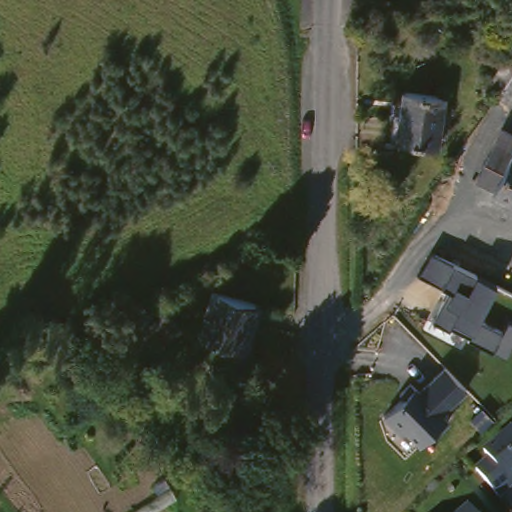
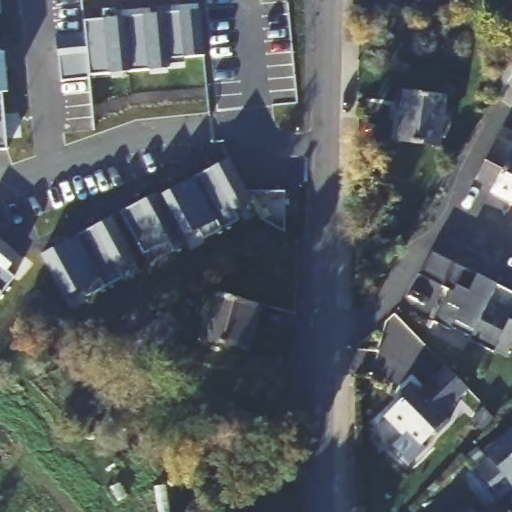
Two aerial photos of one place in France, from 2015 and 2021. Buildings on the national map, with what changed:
new [(115,26),(123,25),(123,17),(155,15),(155,22),(162,21),(162,6),(174,5),(174,11),(198,10),(201,55),(183,56),(184,64),(166,65),(166,69),(88,74),(84,20),(102,20),(102,10),(114,9),(115,19),(115,26)]
new [(0,151),(0,53),(2,52),(6,92),(1,93),(6,150),(0,151)]
unchanged [(494,79),(512,52),(512,90),(506,86),(494,79)]
unchanged [(455,140),(446,140),(445,150),(405,145),(412,94),(452,100),(450,115),(458,115),(455,140)]
unchanged [(503,186),(484,176),(511,124),(512,125),(512,196),(501,190),(503,186)]
new [(133,219),(127,207),(157,192),(162,205),(170,201),(165,192),(220,164),(225,172),(232,167),(249,201),(232,210),(235,217),(228,220),(230,225),(202,238),(198,230),(180,239),(183,245),(165,255),(160,245),(142,254),(126,221),(133,219)]
new [(104,220),(105,223),(112,219),(134,260),(116,270),(121,278),(86,296),(81,286),(63,296),(42,255),(104,220)]
new [(18,255),(5,270),(14,277),(0,294),(0,241),(18,255)]
unchanged [(449,330),(433,320),(450,290),(441,285),(439,285),(420,274),(432,252),(454,263),(477,275),(497,285),(478,320),(502,331),(509,318),(512,320),(512,343),(511,342),(505,356),(494,351),(493,352),(469,339),(470,335),(452,325),(449,330)]
unchanged [(265,300),(252,346),(209,335),(213,315),(218,315),(225,291),(265,300)]
unchanged [(182,305),(193,320),(149,351),(136,336),(182,305)]
unchanged [(416,394),(441,369),(460,388),(463,391),(437,416),(417,395),(416,394)]
unchanged [(416,394),(417,395),(437,416),(445,423),(432,435),(430,433),(417,447),(403,433),(398,436),(380,418),(400,399),(396,395),(407,385),(416,394)]
unchanged [(480,456),(509,432),(512,435),(512,481),(506,485),(510,490),(495,501),(472,473),(486,462),(480,456)]
unchanged [(465,510),(467,512),(462,512),(465,510)]

